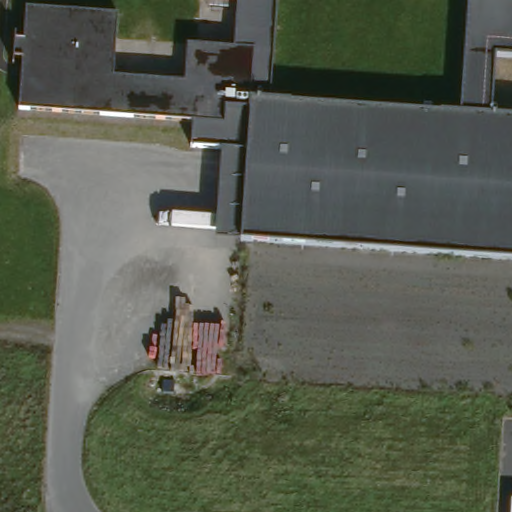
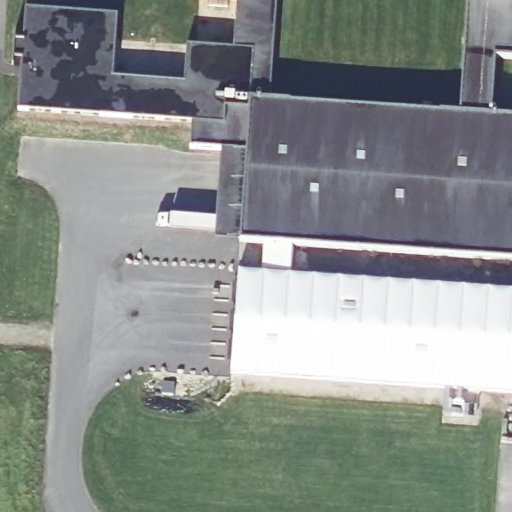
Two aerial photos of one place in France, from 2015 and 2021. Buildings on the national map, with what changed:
unchanged [(13,59),(14,39),(27,39),(28,9),(121,15),(117,75),(188,80),(189,46),(236,49),(238,1),(233,0),(278,0),(269,101),(462,114),(473,0),(512,0),(512,60),(498,59),(492,116),(512,117),(512,259),(243,240),(219,240),(225,148),(191,146),(191,119),(20,106),(26,60),(13,59)]
new [(265,242),(292,244),(290,274),(512,289),(512,393),(231,373),(240,271),(263,272),(265,242)]

